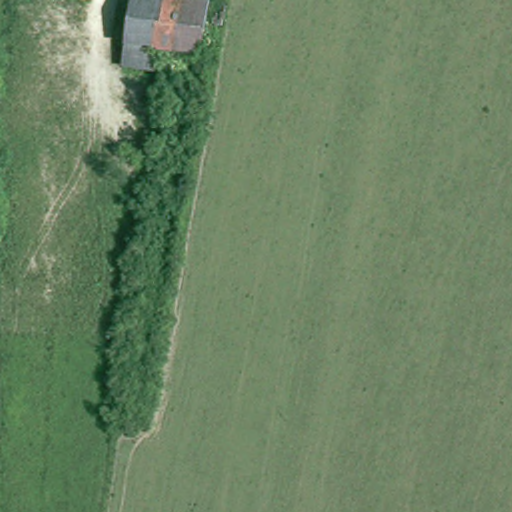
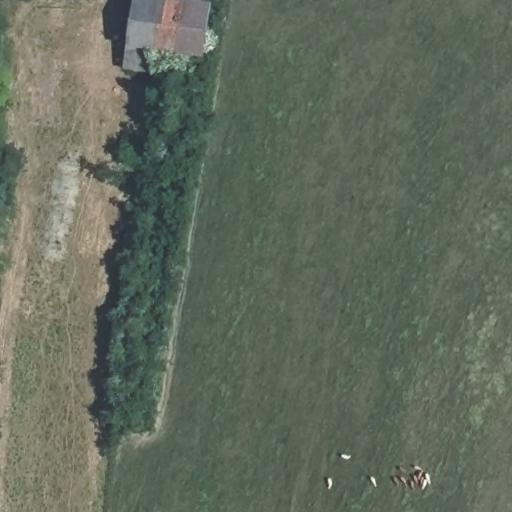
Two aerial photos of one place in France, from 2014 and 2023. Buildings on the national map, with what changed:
unchanged [(174,57),(127,51),(135,5),(181,11),(209,14),(202,61),(174,57)]

